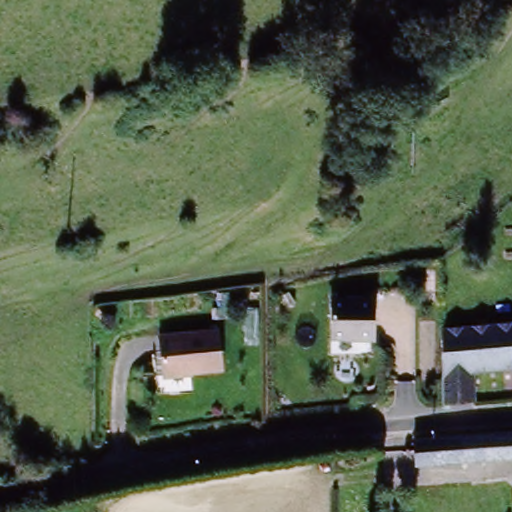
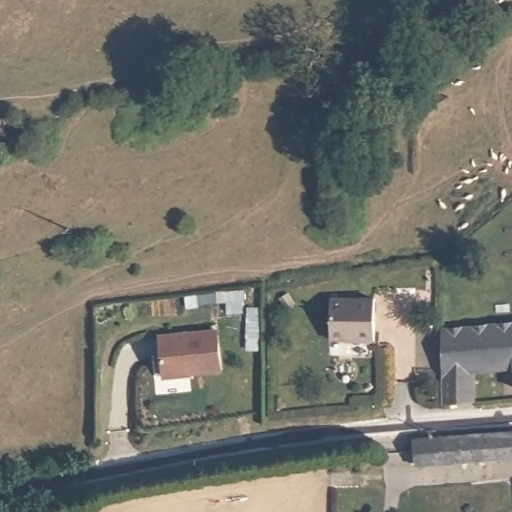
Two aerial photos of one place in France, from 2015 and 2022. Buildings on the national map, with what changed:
unchanged [(330,300),(375,297),(378,338),(334,341),(330,300)]
unchanged [(473,376),(477,403),(445,406),(439,333),(512,325),(512,371),(473,376)]
unchanged [(160,376),(155,333),(215,328),(218,369),(160,376)]
unchanged [(414,469),(411,441),(512,433),(512,457),(414,469)]

